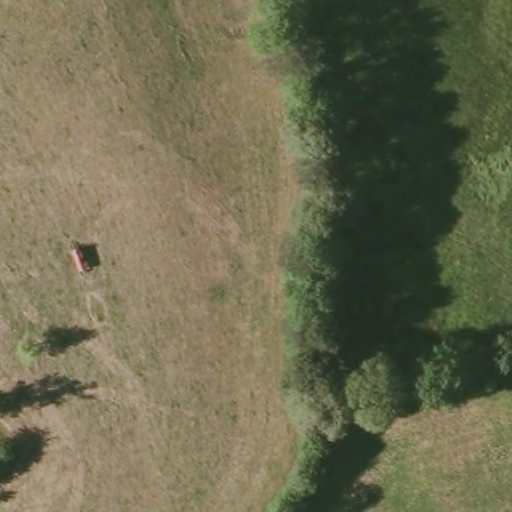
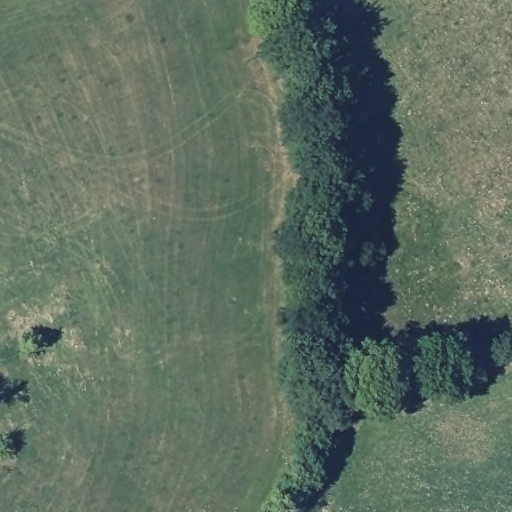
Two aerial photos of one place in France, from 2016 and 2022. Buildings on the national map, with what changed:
[]

